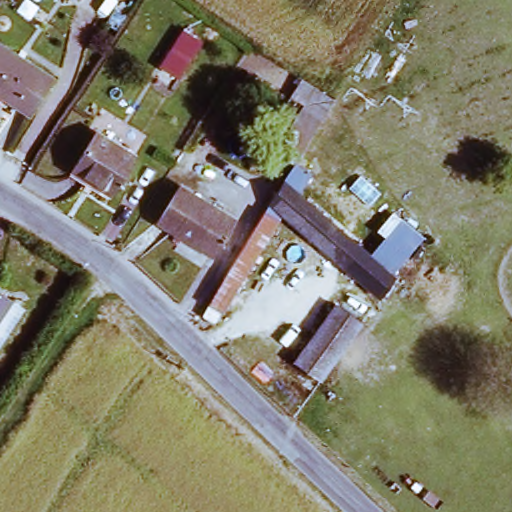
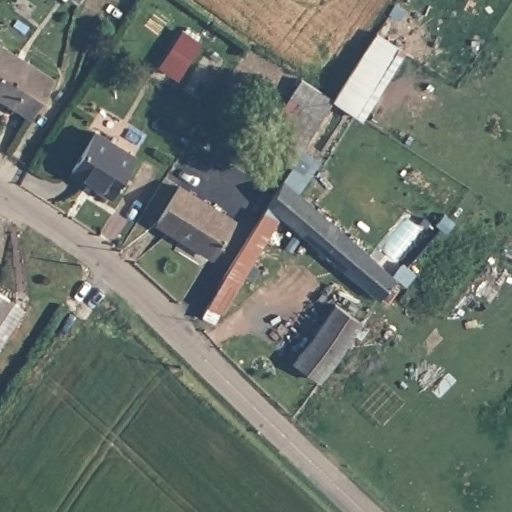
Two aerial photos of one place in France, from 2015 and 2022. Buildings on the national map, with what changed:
unchanged [(20,0),(30,7),(25,16),(5,2),(6,0),(20,0)]
new [(377,30),(400,55),(363,118),(336,91),(377,30)]
unchanged [(198,42),(180,76),(162,66),(182,32),(198,42)]
unchanged [(0,96),(0,47),(50,79),(27,114),(0,96)]
unchanged [(305,84),(332,101),(322,115),(305,105),(308,99),(297,92),(305,84)]
unchanged [(110,198),(68,172),(94,131),(136,157),(110,198)]
unchanged [(210,322),(192,311),(276,182),(387,277),(371,296),(279,218),(210,322)]
unchanged [(156,222),(177,186),(234,219),(213,254),(156,222)]
unchanged [(0,298),(8,302),(0,316),(0,298)]
unchanged [(293,361),(333,306),(359,325),(319,380),(293,361)]

